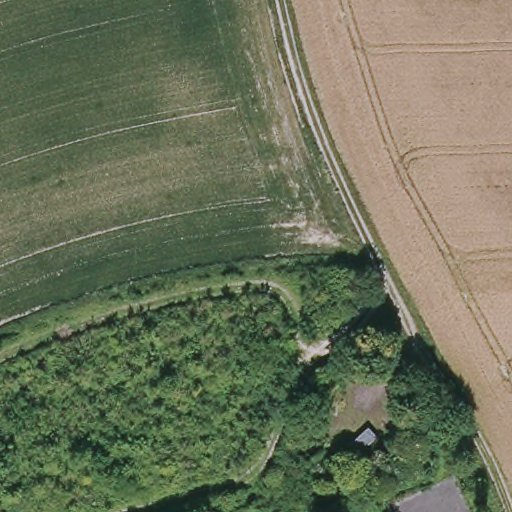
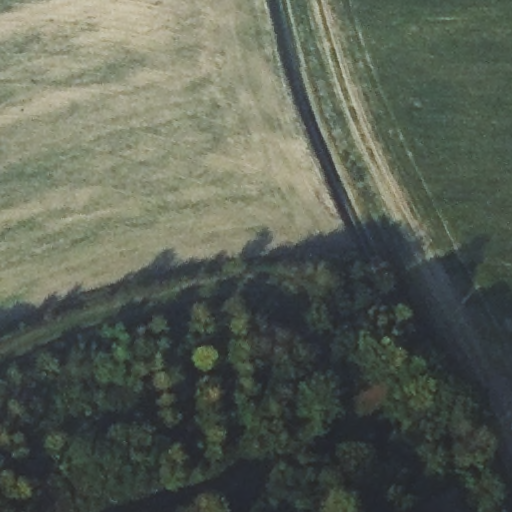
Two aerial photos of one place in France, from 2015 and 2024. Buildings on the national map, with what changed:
unchanged [(365,431),(374,438),(358,457),(350,449),(365,431)]

